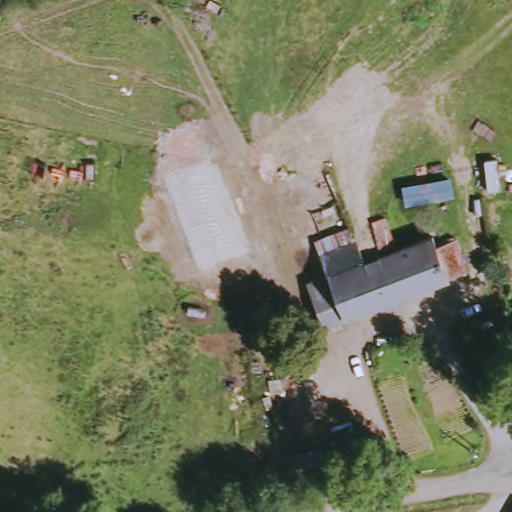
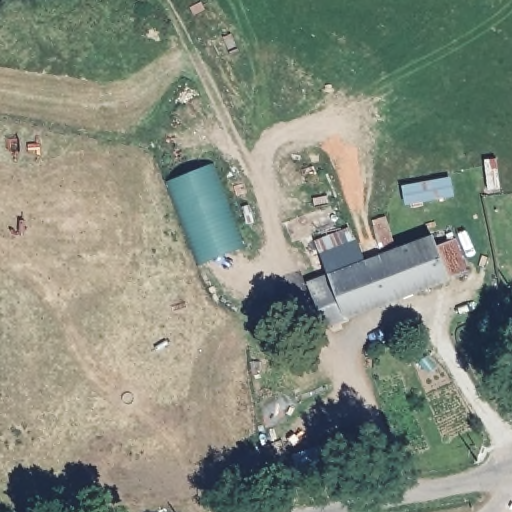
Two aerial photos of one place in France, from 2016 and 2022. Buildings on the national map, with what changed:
new [(210,166),(244,248),(199,266),(166,185),(210,166)]
unchanged [(461,178),(465,204),(411,209),(410,185),(461,178)]
unchanged [(350,320),(321,244),(355,232),(368,262),(435,236),(440,246),(457,241),(469,273),(350,320)]

